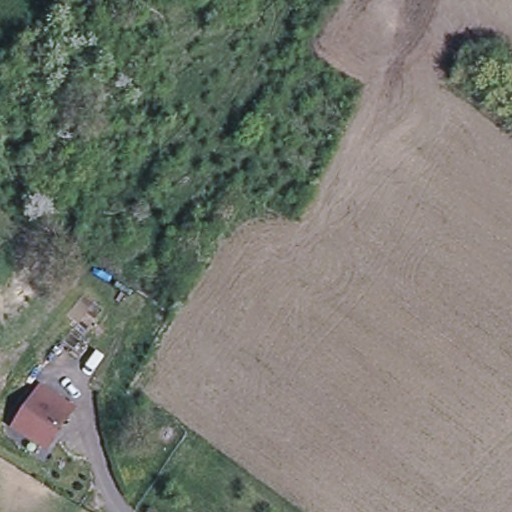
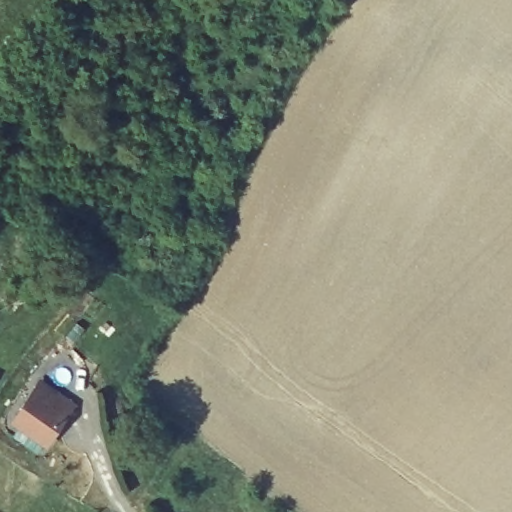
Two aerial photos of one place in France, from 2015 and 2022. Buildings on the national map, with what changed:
unchanged [(32,398),(39,387),(68,405),(61,416),(43,445),(14,426),(32,398)]

